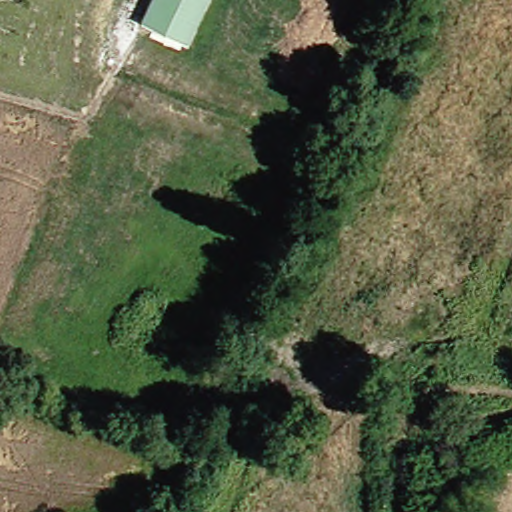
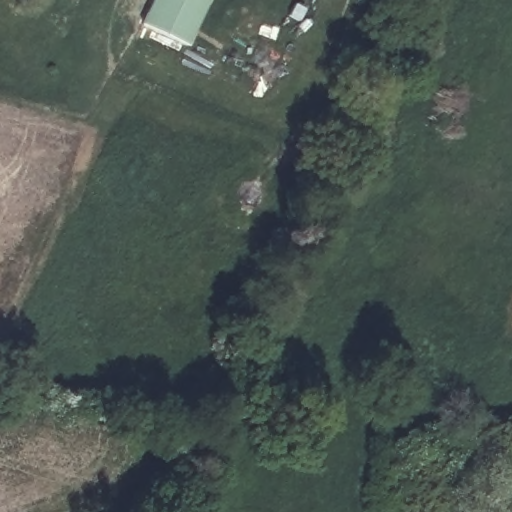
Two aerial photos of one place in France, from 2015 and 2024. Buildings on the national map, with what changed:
unchanged [(187,47),(144,27),(156,0),(209,0),(187,47)]

